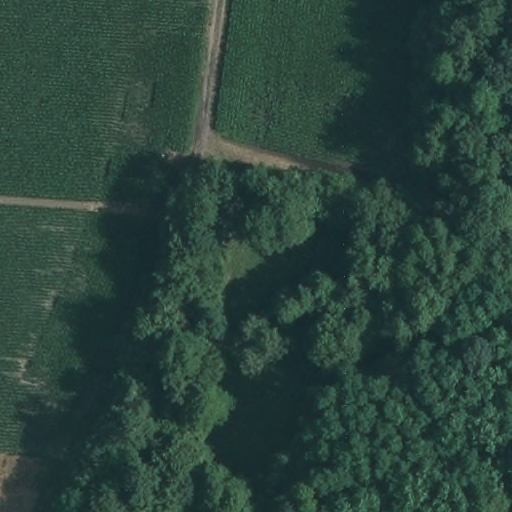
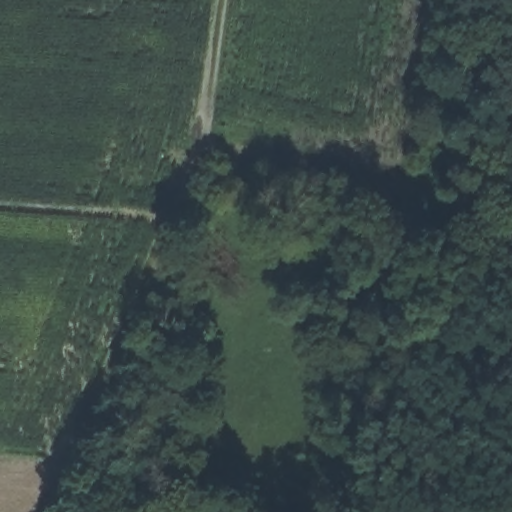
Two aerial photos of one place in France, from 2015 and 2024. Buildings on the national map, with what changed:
unchanged [(125,448),(146,450),(144,473),(123,471),(125,448)]

